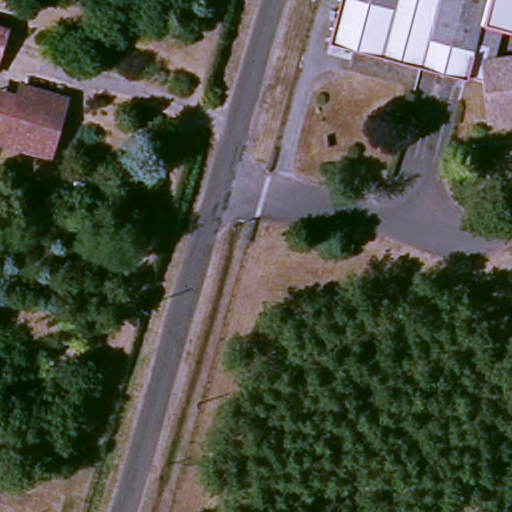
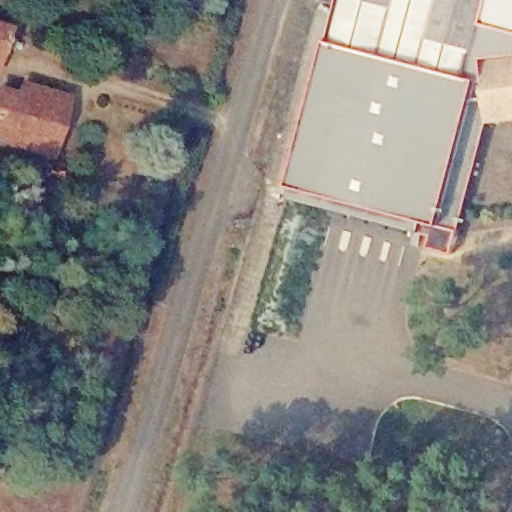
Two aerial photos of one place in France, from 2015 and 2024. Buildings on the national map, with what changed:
unchanged [(512,0),(512,43),(498,39),(489,74),(512,72),(512,127),(481,128),(479,91),(404,72),(327,52),(339,0),(512,0)]
unchanged [(0,49),(0,24),(6,26),(0,49)]
new [(404,72),(472,90),(479,91),(481,128),(489,128),(461,229),(440,223),(375,205),(370,218),(287,194),(327,52),(404,72)]
unchanged [(56,91),(40,154),(0,144),(0,125),(11,80),(56,91)]

